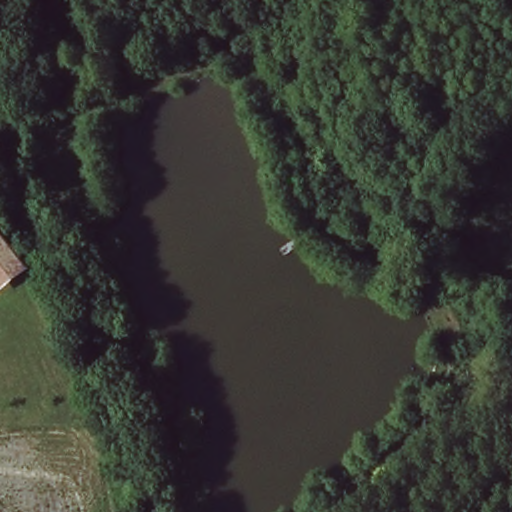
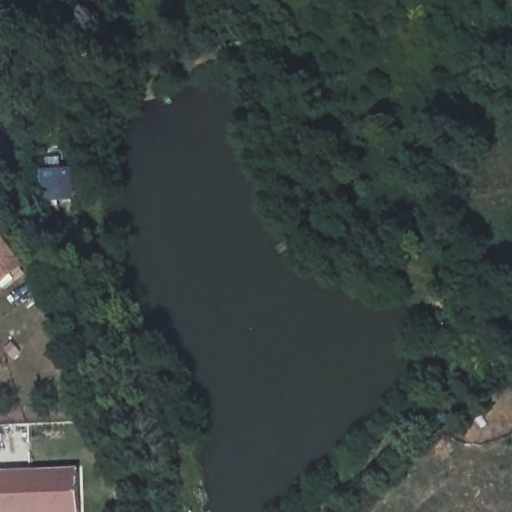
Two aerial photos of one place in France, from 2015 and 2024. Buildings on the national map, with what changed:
unchanged [(20,263),(0,277),(0,237),(20,263)]
new [(79,470),(79,512),(0,512),(0,472),(79,470)]

